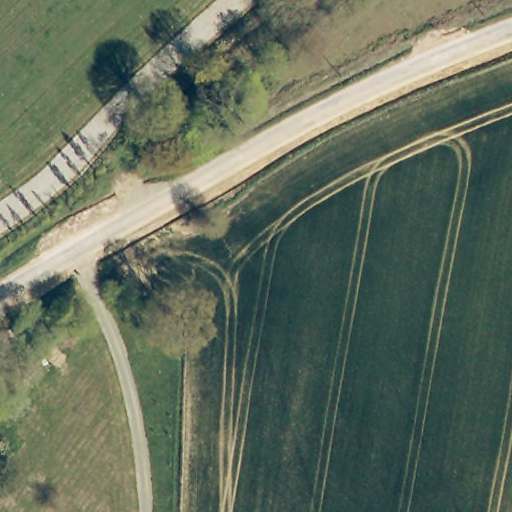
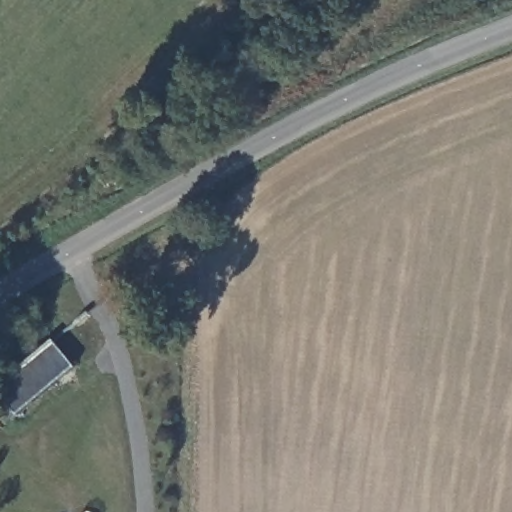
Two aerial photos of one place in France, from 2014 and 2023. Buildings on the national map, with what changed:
new [(17,415),(0,391),(0,383),(53,338),(77,367),(17,415)]

